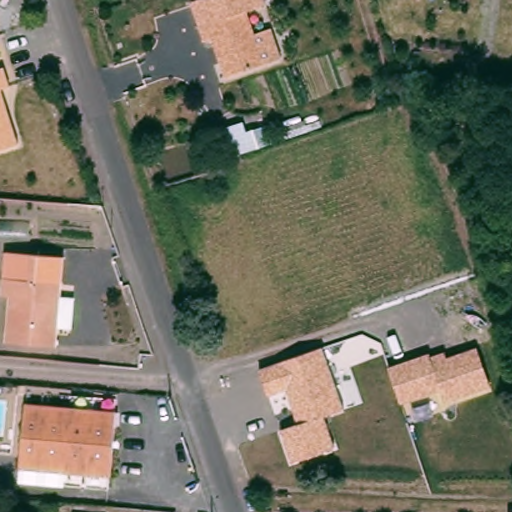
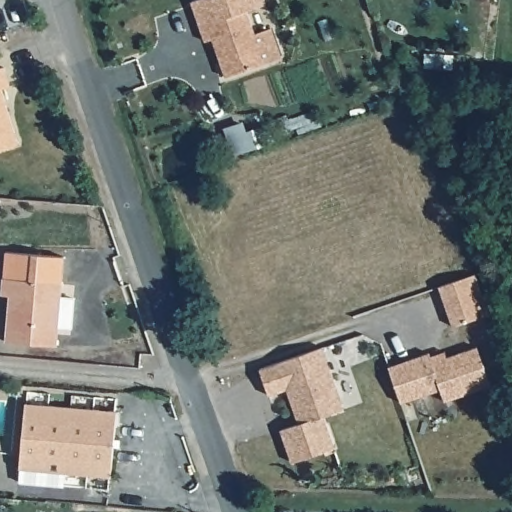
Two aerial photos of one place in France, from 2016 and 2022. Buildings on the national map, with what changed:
unchanged [(280,63),(265,68),(226,81),(215,49),(207,52),(191,6),(208,0),(263,0),(266,9),(247,15),(255,40),(270,35),(280,63)]
unchanged [(0,150),(0,67),(4,66),(10,87),(3,89),(19,144),(0,150)]
unchanged [(245,133),(261,127),(266,142),(250,147),(245,133)]
unchanged [(55,297),(69,298),(66,327),(52,326),(51,345),(1,341),(5,295),(0,294),(0,264),(1,251),(59,256),(55,297)]
new [(476,273),(490,313),(484,315),(453,325),(439,286),(470,276),(476,273)]
unchanged [(445,401),(441,389),(400,404),(389,366),(431,351),(432,355),(446,350),(448,356),(477,346),(491,386),(445,401)]
unchanged [(280,429),(298,424),(287,389),(267,396),(258,370),(323,348),(343,409),(325,417),(335,449),(291,463),(280,429)]
unchanged [(116,411),(110,475),(20,468),(25,403),(116,411)]

